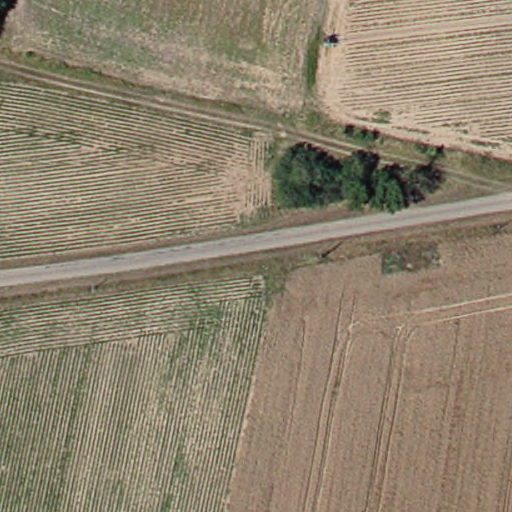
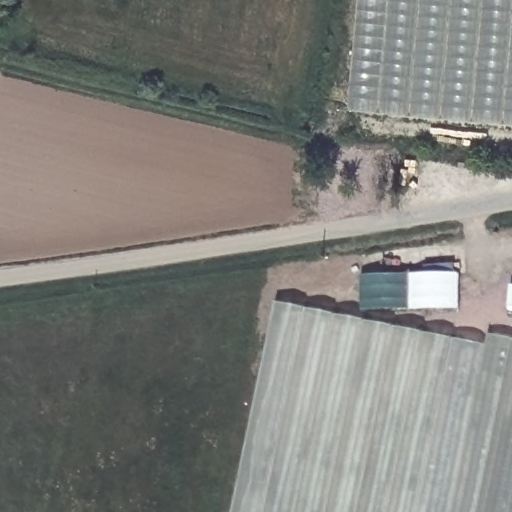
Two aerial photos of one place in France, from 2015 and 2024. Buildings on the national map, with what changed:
new [(512,0),(512,137),(365,132),(377,0),(512,0)]
new [(460,273),(460,310),(363,311),(361,275),(460,273)]
new [(487,345),(489,334),(512,338),(512,512),(234,512),(277,302),(487,345)]

